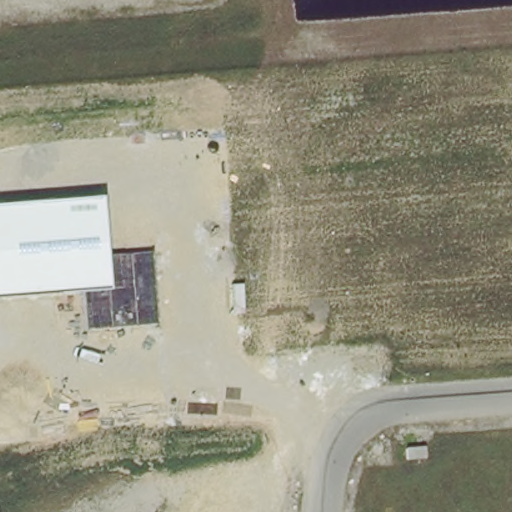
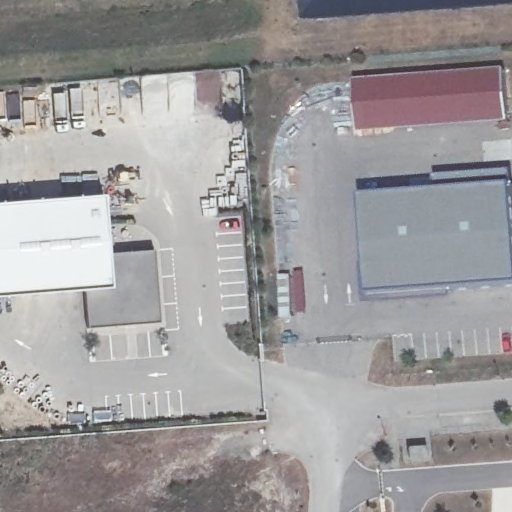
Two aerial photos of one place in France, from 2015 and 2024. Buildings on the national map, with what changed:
new [(506,71),(509,124),(359,135),(355,81),(506,71)]
new [(435,178),(512,174),(512,286),(368,297),(364,200),(436,193),(435,178)]
unchanged [(104,196),(109,255),(153,251),(159,322),(89,327),(86,291),(0,296),(0,204),(104,196)]

